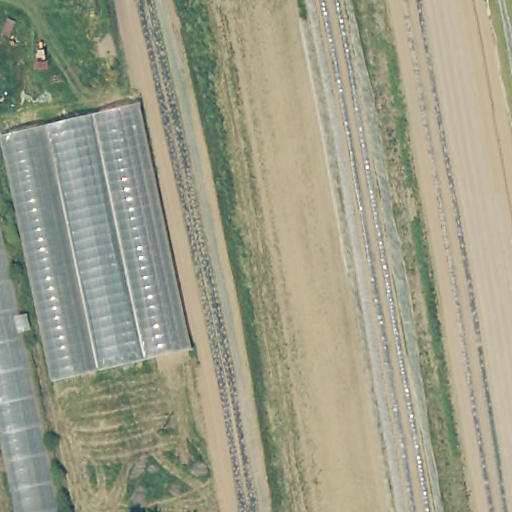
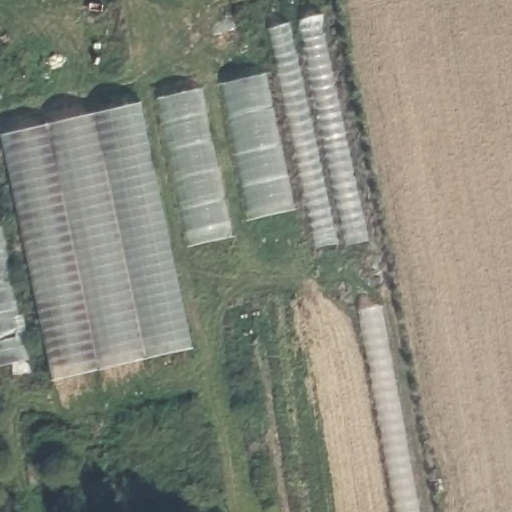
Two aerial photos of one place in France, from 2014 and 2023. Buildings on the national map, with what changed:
new [(369,242),(315,254),(264,16),(318,4),(369,242)]
new [(295,209),(248,220),(220,84),(266,73),(295,209)]
new [(233,237),(187,246),(156,98),(202,87),(233,237)]
unchanged [(139,103),(190,348),(53,378),(0,135),(139,103)]
unchanged [(27,370),(0,377),(0,242),(27,370)]
new [(380,306),(419,512),(395,512),(357,311),(380,306)]

